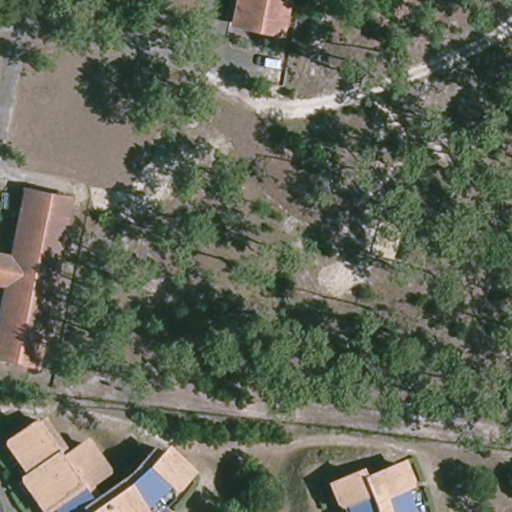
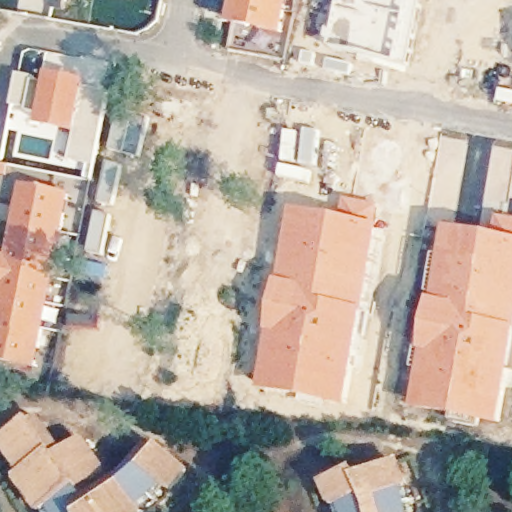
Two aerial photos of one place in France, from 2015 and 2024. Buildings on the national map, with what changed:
unchanged [(233,21),(237,0),(287,0),(281,30),(233,21)]
new [(323,45),(328,26),(338,29),(344,0),(418,0),(404,65),(334,49),(334,47),(323,45)]
new [(12,116),(19,74),(39,79),(30,112),(43,115),(52,74),(90,82),(90,86),(77,139),(72,138),(64,136),(55,134),(40,129),(41,124),(12,116)]
new [(71,161),(77,139),(89,89),(110,93),(96,166),(71,161)]
unchanged [(72,199),(39,365),(0,357),(0,334),(10,285),(0,284),(0,256),(15,258),(28,190),(72,199)]
new [(268,338),(278,280),(293,207),(339,216),(344,197),(378,204),(374,227),(381,229),(365,311),(361,335),(344,407),(261,392),(268,338)]
new [(448,226),(491,234),(496,214),(512,216),(512,373),(499,427),(415,411),(420,366),(432,300),(448,226)]
unchanged [(58,510),(31,475),(34,472),(6,435),(32,415),(34,417),(41,412),(66,445),(84,433),(105,463),(91,475),(101,488),(134,463),(154,438),(162,444),(168,437),(191,458),(166,490),(142,512),(59,512),(58,510)]
unchanged [(333,473),(369,453),(376,467),(410,456),(431,510),(431,512),(352,512),(333,473)]

